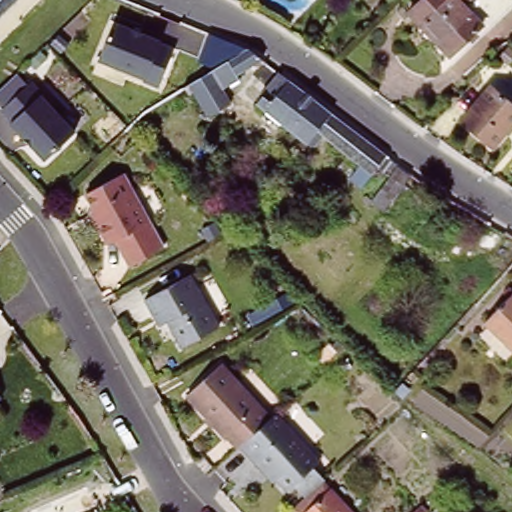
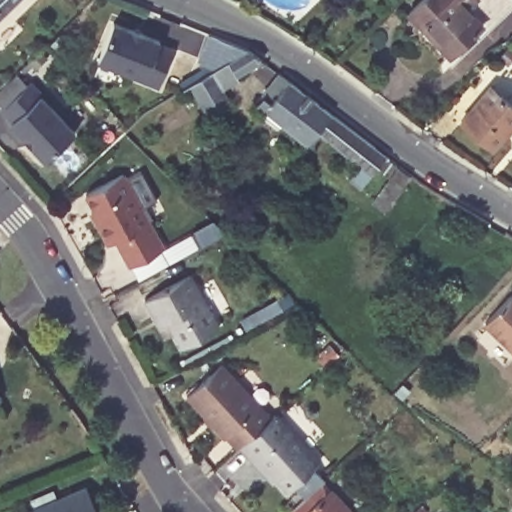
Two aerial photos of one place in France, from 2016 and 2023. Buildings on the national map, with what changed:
unchanged [(0,20),(0,0),(21,0),(0,20)]
unchanged [(464,4),(482,21),(450,59),(425,35),(427,32),(410,15),(423,0),(460,0),(464,4)]
unchanged [(464,4),(460,0),(467,0),(464,4)]
unchanged [(174,48),(158,88),(142,80),(95,61),(110,19),(160,38),(174,48)]
unchanged [(28,54),(22,61),(15,54),(22,48),(28,54)]
unchanged [(250,51),(266,63),(241,79),(243,82),(226,93),(234,106),(212,119),(193,88),(250,51)]
unchanged [(32,82),(40,92),(75,132),(43,162),(10,124),(0,111),(32,82)]
unchanged [(359,191),(357,192),(345,184),(357,167),(327,144),(317,156),(266,117),(275,106),(274,103),(288,86),(316,107),(407,177),(398,188),(381,209),(370,200),(359,191)]
unchanged [(461,128),(484,102),(477,97),(486,87),(492,93),(512,111),(512,131),(492,153),(461,128)]
unchanged [(124,173),(164,247),(134,265),(120,238),(110,244),(97,222),(91,209),(95,207),(87,192),(124,173)]
unchanged [(220,325),(182,346),(167,319),(163,323),(158,313),(155,315),(147,298),(192,273),(220,325)]
unchanged [(512,351),(495,335),(485,325),(488,322),(512,296),(512,351)]
unchanged [(227,431),(223,435),(187,393),(222,362),(271,415),(238,445),(227,431)]
unchanged [(2,398),(0,399),(0,395),(2,398)]
unchanged [(285,490),(254,456),(247,460),(235,447),(238,445),(271,415),(273,414),(315,462),(310,467),(322,480),(304,496),(293,482),(285,490)]
unchanged [(353,512),(300,512),(329,486),(353,512)]
new [(95,512),(26,512),(85,487),(95,512)]

